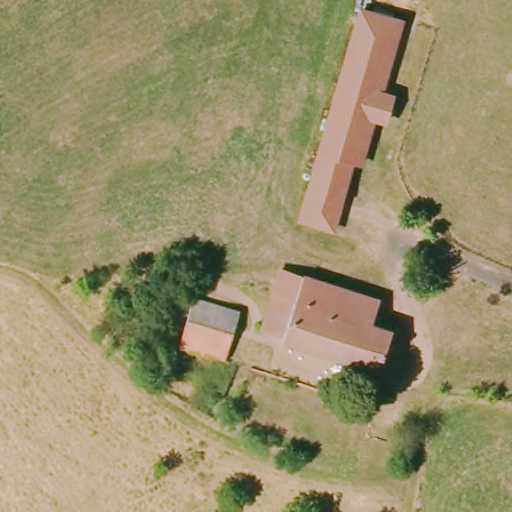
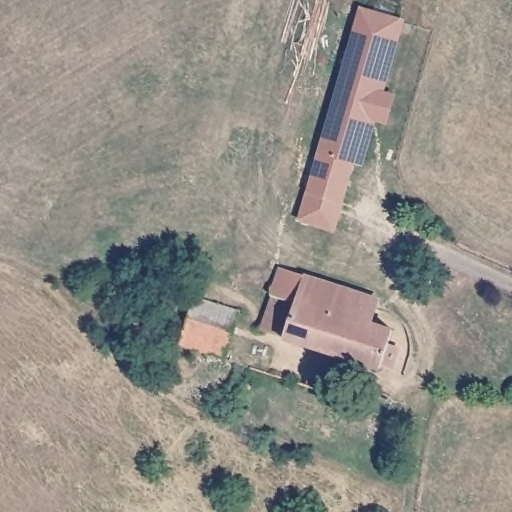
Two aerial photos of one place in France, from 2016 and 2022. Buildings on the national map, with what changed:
unchanged [(363,14),(400,27),(355,170),(349,168),(321,253),(317,266),(285,255),(290,238),(363,14)]
unchanged [(276,266),(370,302),(363,317),(388,328),(382,342),(402,350),(395,373),(278,334),(280,327),(257,318),(276,266)]
unchanged [(241,315),(224,363),(179,346),(195,300),(241,315)]

